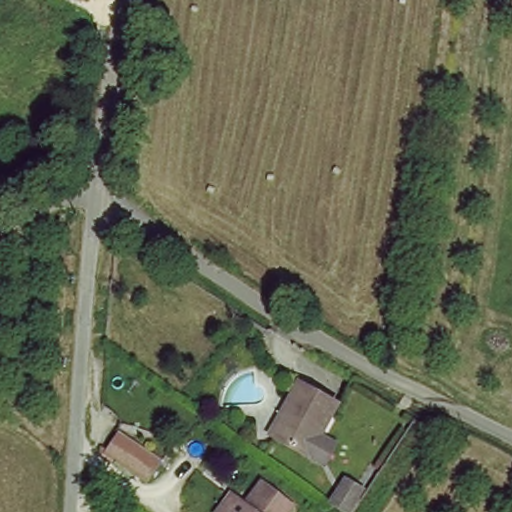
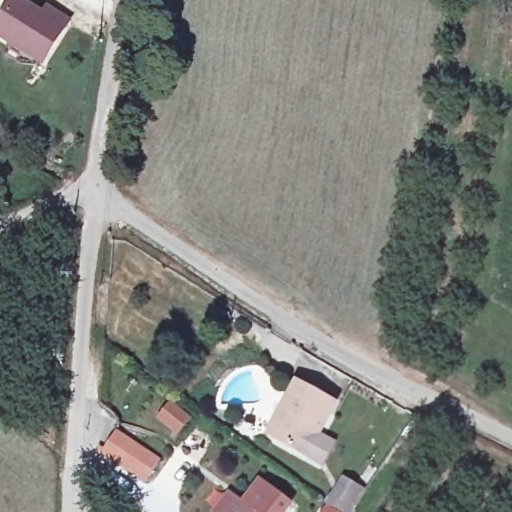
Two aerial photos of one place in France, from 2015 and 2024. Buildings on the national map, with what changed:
new [(0,18),(11,0),(14,0),(41,17),(45,10),(61,20),(36,59),(33,65),(15,60),(0,51),(8,40),(0,34),(0,18)]
unchanged [(299,378),(336,400),(303,453),(267,433),(299,378)]
unchanged [(151,455),(140,475),(103,456),(113,435),(151,455)]
unchanged [(360,487),(342,510),(326,498),(341,475),(360,487)]
unchanged [(236,500),(244,506),(260,483),(289,504),(284,512),(212,512),(225,493),(236,500)]

